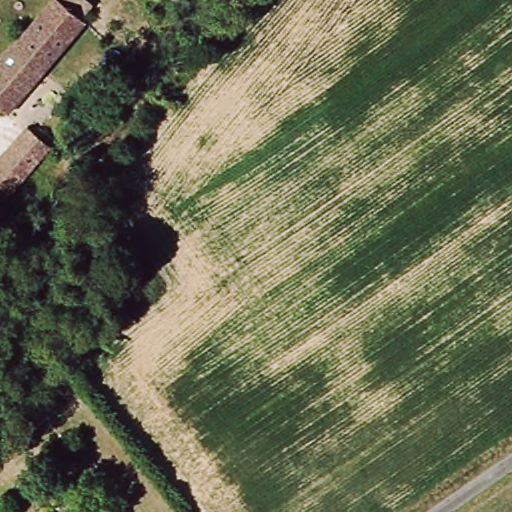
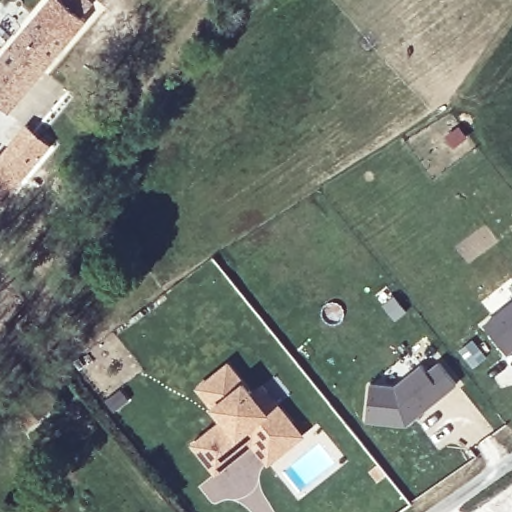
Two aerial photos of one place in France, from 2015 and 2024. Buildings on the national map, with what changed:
unchanged [(85,15),(10,111),(0,104),(0,56),(45,0),(89,0),(80,11),(85,15)]
unchanged [(52,144),(12,192),(0,182),(0,152),(22,124),(52,144)]
new [(512,300),(512,349),(506,353),(483,322),(512,300)]
new [(214,474),(190,447),(221,421),(195,389),(225,365),(249,394),(259,387),(272,376),(288,395),(275,406),(288,423),(300,436),(266,464),(255,450),(250,444),(244,450),(214,474)]
new [(370,386),(393,389),(420,367),(426,374),(438,365),(455,386),(405,428),(365,422),(370,386)]
unchanged [(12,408),(39,384),(52,402),(27,425),(12,408)]

